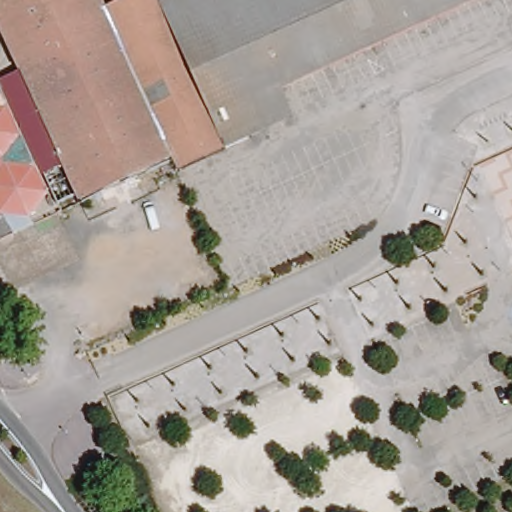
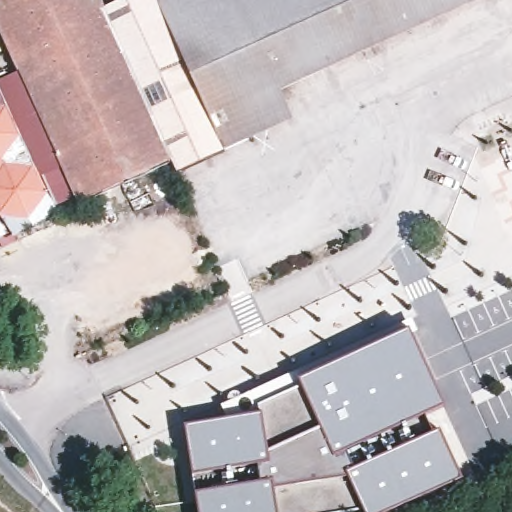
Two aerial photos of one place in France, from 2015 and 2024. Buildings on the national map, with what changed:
unchanged [(0,27),(0,0),(100,0),(104,9),(123,0),(331,0),(356,54),(279,90),(291,117),(251,133),(176,167),(173,159),(76,202),(60,164),(18,71),(0,27)]
unchanged [(331,0),(474,0),(464,5),(363,51),(356,54),(331,0)]
unchanged [(60,164),(36,174),(43,191),(23,215),(0,215),(0,79),(18,71),(60,164)]
new [(439,431),(462,479),(390,512),(364,512),(363,509),(347,512),(201,512),(186,427),(223,419),(220,406),(412,320),(417,332),(408,332),(443,407),(431,413),(439,431)]
demolished [(324,406),(344,436),(318,453),(298,424),(324,406)]

